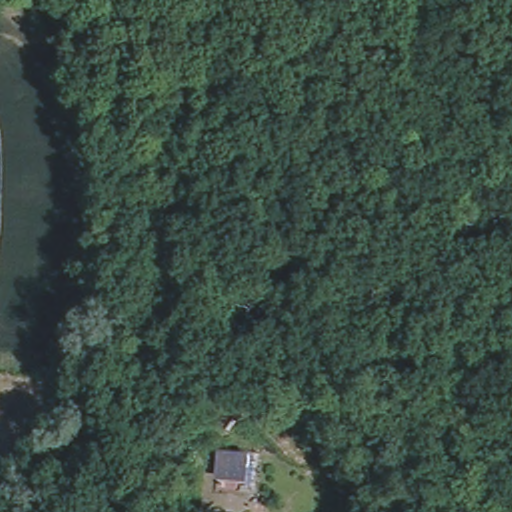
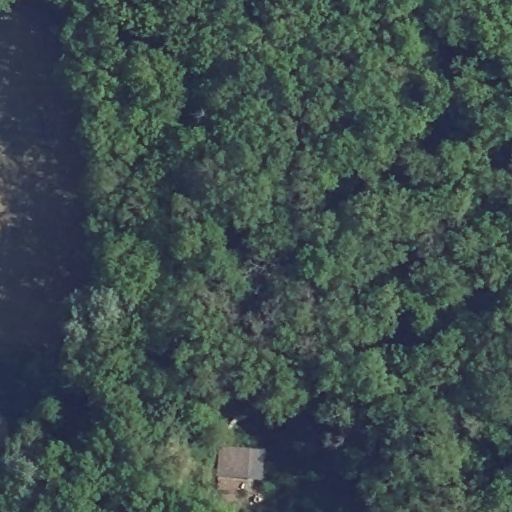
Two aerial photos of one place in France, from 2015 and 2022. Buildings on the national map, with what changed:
unchanged [(262,452),(263,476),(219,474),(220,449),(262,452)]

